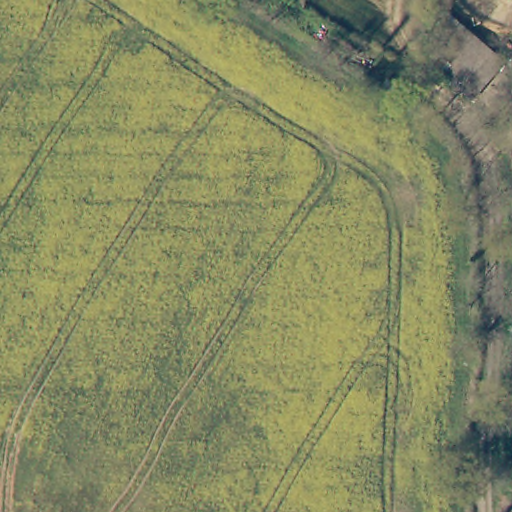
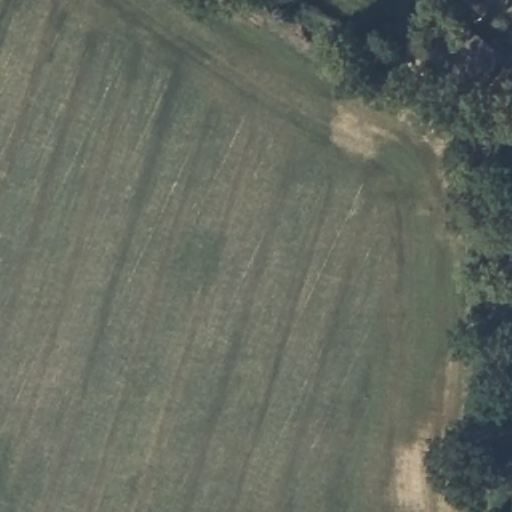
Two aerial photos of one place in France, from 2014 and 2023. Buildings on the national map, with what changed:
unchanged [(499,56),(472,94),(438,66),(457,29),(499,56)]

